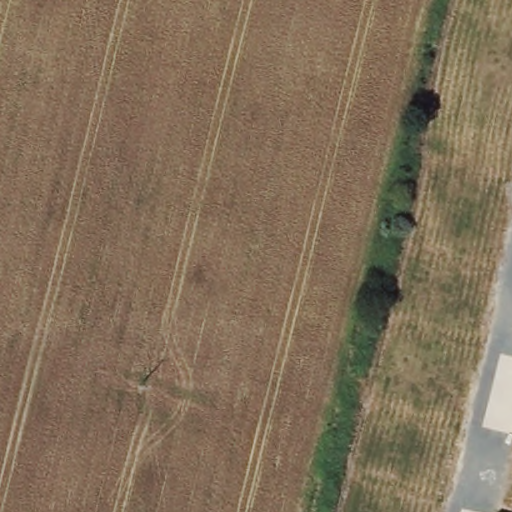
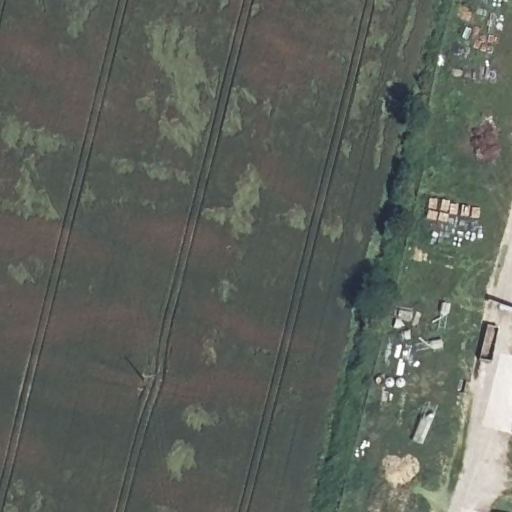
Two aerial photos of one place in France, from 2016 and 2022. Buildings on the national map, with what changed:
unchanged [(494,510),(502,512),(493,512),(494,510)]

